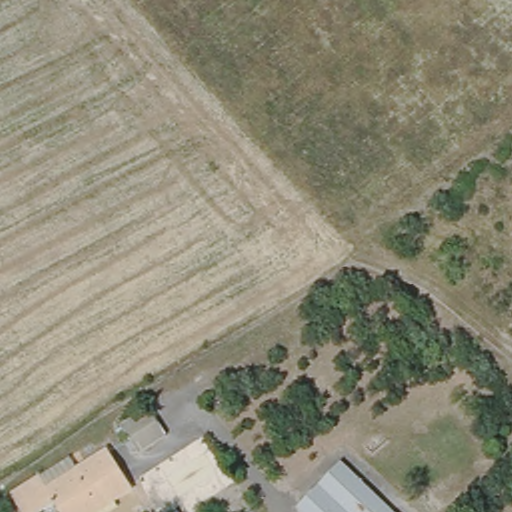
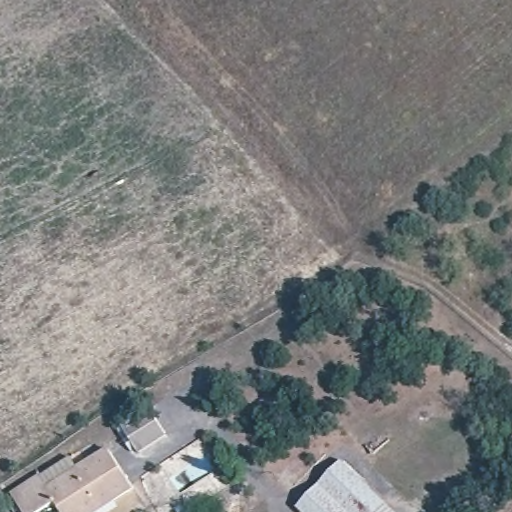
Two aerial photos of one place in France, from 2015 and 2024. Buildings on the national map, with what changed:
unchanged [(153,408),(169,438),(138,454),(123,425),(153,408)]
unchanged [(102,512),(56,512),(54,509),(48,512),(21,512),(10,495),(70,457),(75,465),(105,448),(132,493),(102,512)]
unchanged [(403,512),(316,512),(304,498),(354,456),(403,512)]

